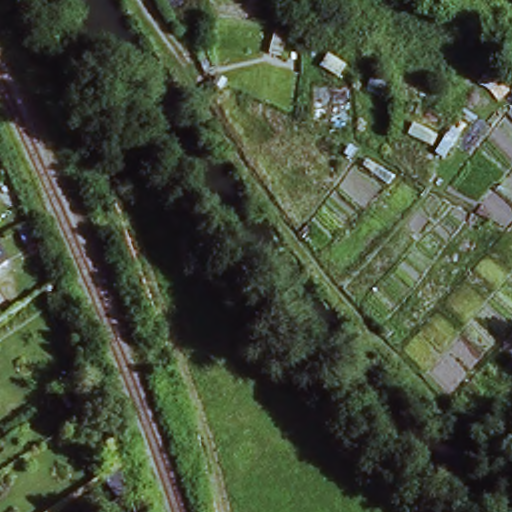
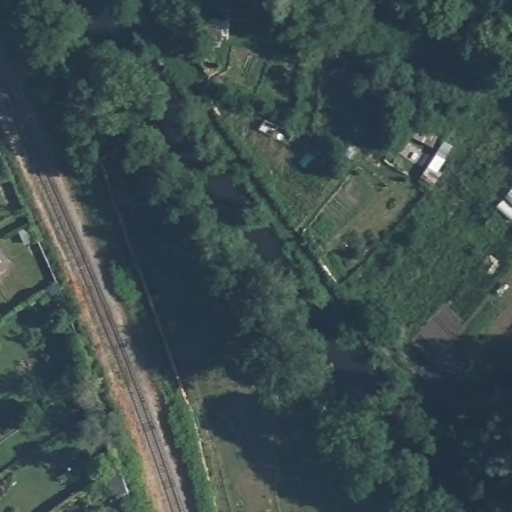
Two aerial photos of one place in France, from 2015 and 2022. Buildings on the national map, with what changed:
unchanged [(366,97),(370,82),(387,86),(382,104),(366,97)]
unchanged [(0,270),(0,250),(10,263),(0,270)]

